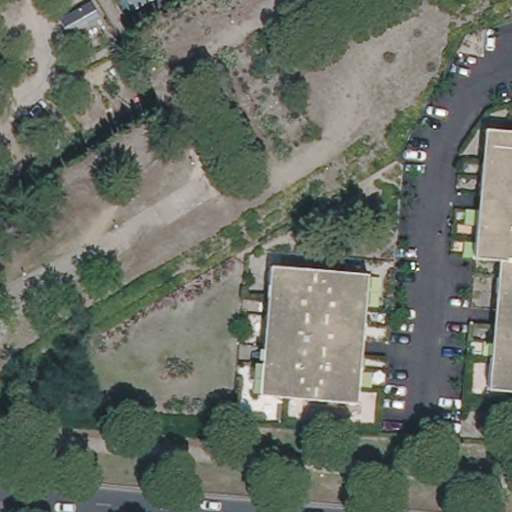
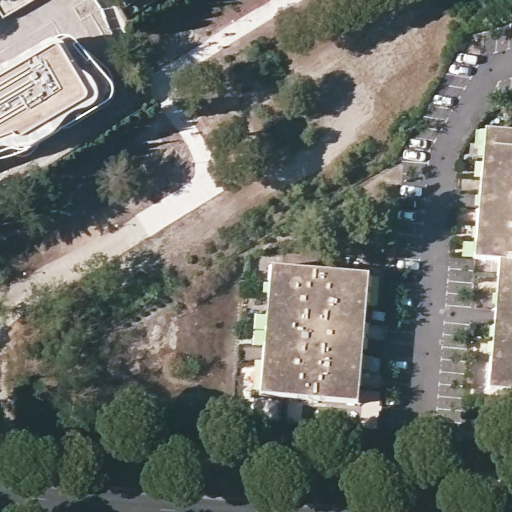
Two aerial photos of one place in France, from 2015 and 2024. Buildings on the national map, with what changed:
new [(0,15),(0,0),(38,0),(3,20),(0,15)]
new [(47,45),(61,39),(69,39),(82,49),(107,72),(112,81),(115,91),(113,98),(112,103),(107,108),(66,132),(54,139),(43,147),(27,154),(12,156),(0,157),(0,69),(10,66),(47,45)]
unchanged [(500,259),(476,256),(484,165),(487,128),(512,130),(512,389),(489,387),(498,286),(500,259)]
unchanged [(364,273),(352,400),(256,391),(268,263),(364,273)]

